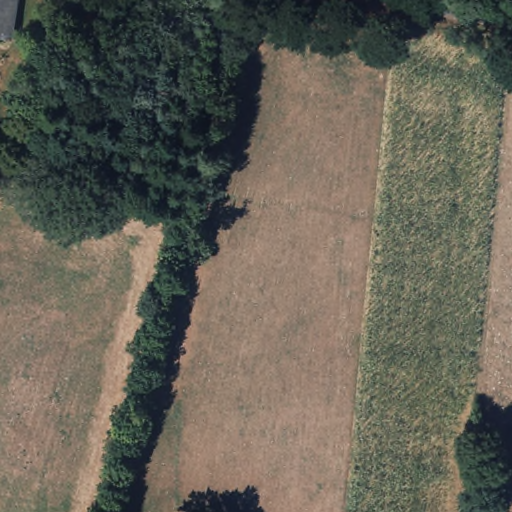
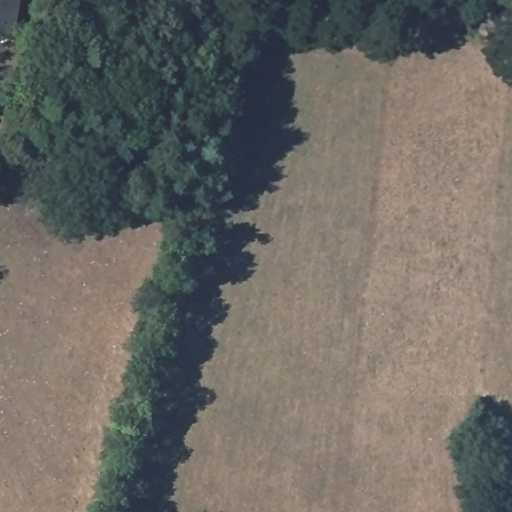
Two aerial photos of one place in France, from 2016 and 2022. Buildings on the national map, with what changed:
unchanged [(0,39),(0,0),(18,0),(15,40),(0,39)]

